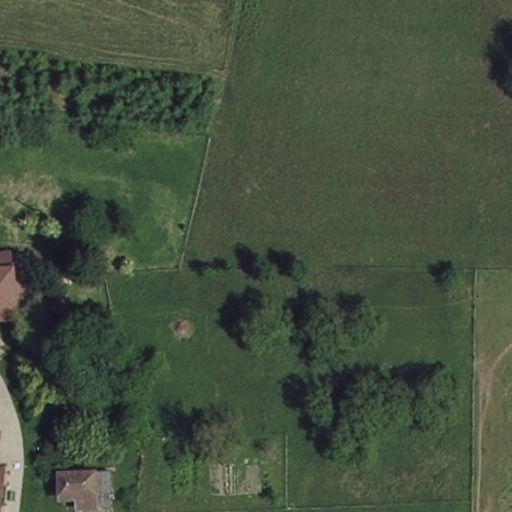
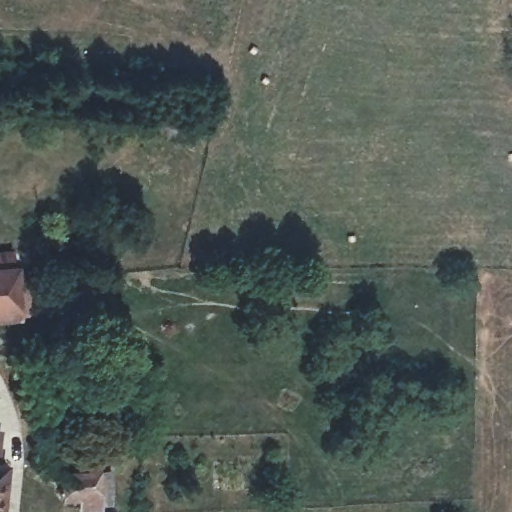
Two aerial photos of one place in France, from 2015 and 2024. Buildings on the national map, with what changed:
unchanged [(20,320),(0,322),(0,274),(17,272),(20,320)]
unchanged [(5,512),(0,512),(0,464),(7,464),(5,512)]
unchanged [(104,471),(106,497),(101,497),(102,511),(85,512),(76,512),(75,502),(65,501),(63,473),(104,471)]

